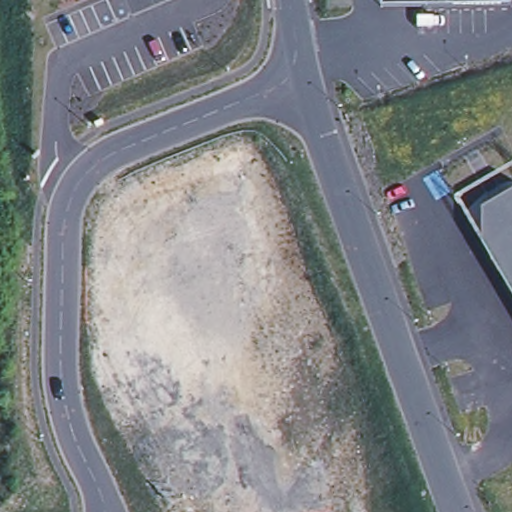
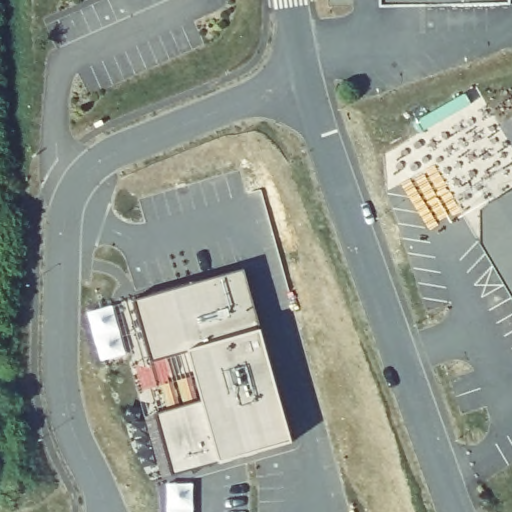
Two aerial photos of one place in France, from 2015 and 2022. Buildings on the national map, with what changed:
unchanged [(380,5),(379,0),(422,0),(423,5),(380,5)]
unchanged [(423,5),(422,0),(510,0),(510,3),(423,5)]
unchanged [(512,191),(512,290),(484,243),(484,208),(512,191)]
new [(245,267),(294,440),(174,474),(156,412),(204,398),(190,350),(152,361),(134,298),(245,267)]

